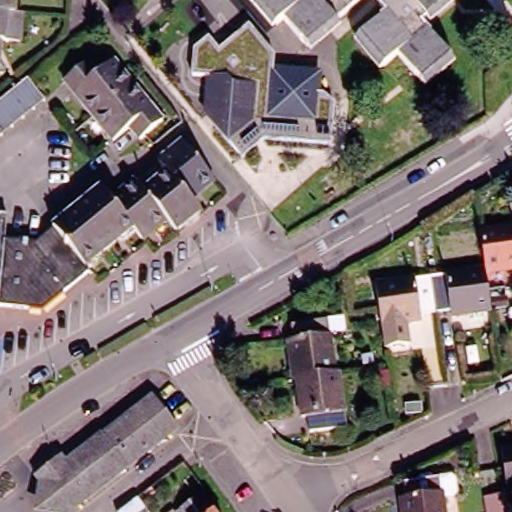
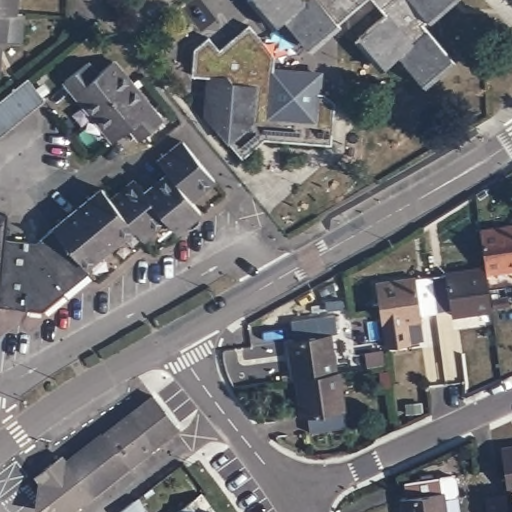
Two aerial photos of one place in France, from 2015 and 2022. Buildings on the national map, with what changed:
unchanged [(19,9),(16,39),(0,37),(0,0),(10,0),(9,8),(19,9)]
unchanged [(234,0),(246,13),(234,23),(221,9),(231,0),(234,0)]
unchanged [(284,14),(277,19),(260,0),(357,0),(308,42),(284,14)]
unchanged [(451,51),(421,77),(398,50),(384,61),(359,31),(386,8),(380,0),(442,0),(422,18),(451,51)]
unchanged [(86,59),(96,71),(113,58),(161,117),(144,131),(140,134),(131,123),(115,136),(66,76),(86,59)]
unchanged [(210,71),(229,73),(233,80),(257,82),(257,83),(263,84),(271,84),(272,65),(303,68),(319,69),(316,116),(269,113),(270,100),(256,99),(254,115),(227,138),(206,111),(209,71),(210,71)]
unchanged [(0,133),(0,98),(6,93),(22,80),(39,101),(0,133)]
unchanged [(136,178),(143,185),(146,182),(166,166),(159,158),(163,156),(183,139),(198,156),(214,175),(208,180),(190,195),(199,208),(189,216),(184,220),(176,227),(166,215),(144,232),(142,234),(139,230),(132,222),(112,197),(136,178)]
unchanged [(102,185),(112,197),(132,222),(99,249),(93,253),(84,261),(54,224),(55,224),(102,185)]
unchanged [(6,235),(0,291),(0,210),(8,211),(6,235)]
unchanged [(512,221),(512,263),(481,267),(481,262),(476,227),(512,221)]
unchanged [(54,224),(84,261),(89,267),(81,274),(42,305),(0,301),(0,291),(6,235),(37,239),(54,224)]
unchanged [(481,262),(481,267),(486,305),(447,311),(447,305),(431,307),(426,270),(481,262)]
unchanged [(426,270),(431,307),(417,309),(417,314),(402,317),(405,338),(381,342),(376,306),(372,278),(426,270)]
unchanged [(288,350),(293,349),(291,334),(344,327),(346,340),(330,343),(335,382),(297,388),(293,388),(288,350)]
unchanged [(379,372),(389,371),(391,386),(381,387),(379,372)]
unchanged [(297,388),(335,382),(339,382),(346,438),(310,444),(308,427),(302,428),(301,423),(297,391),(297,388)]
unchanged [(149,395),(174,428),(151,446),(125,414),(149,395)]
unchanged [(125,414),(151,446),(124,467),(99,435),(125,414)]
unchanged [(124,467),(88,496),(63,463),(99,435),(124,467)]
unchanged [(508,487),(504,463),(502,444),(512,442),(512,486),(508,487)]
unchanged [(34,498),(37,482),(32,476),(58,457),(63,463),(88,496),(67,512),(45,512),(34,498)]
unchanged [(396,488),(402,487),(399,474),(436,469),(447,467),(451,470),(453,484),(450,488),(439,489),(442,512),(400,512),(396,488)]
unchanged [(176,508),(201,489),(217,512),(180,512),(176,508)]
unchanged [(505,489),(509,512),(487,512),(484,492),(489,491),(505,489)]
unchanged [(134,502),(142,512),(121,512),(134,502)]

